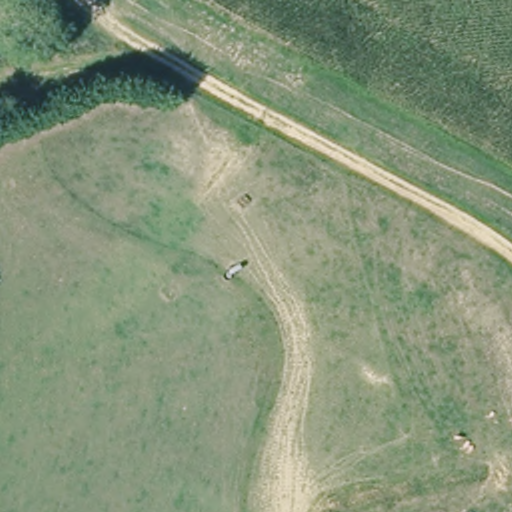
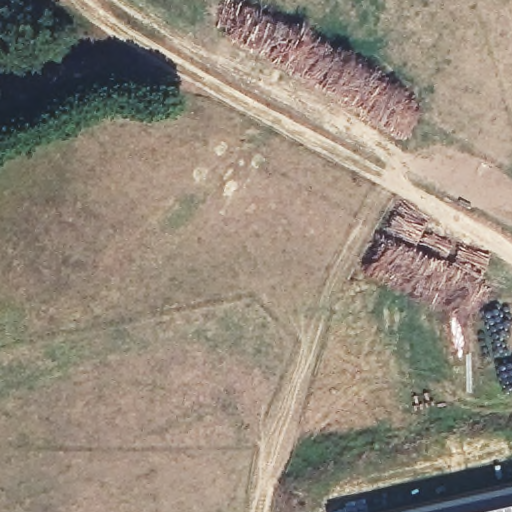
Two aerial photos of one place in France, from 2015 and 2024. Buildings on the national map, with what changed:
new [(512,482),(512,512),(377,512),(512,482)]

